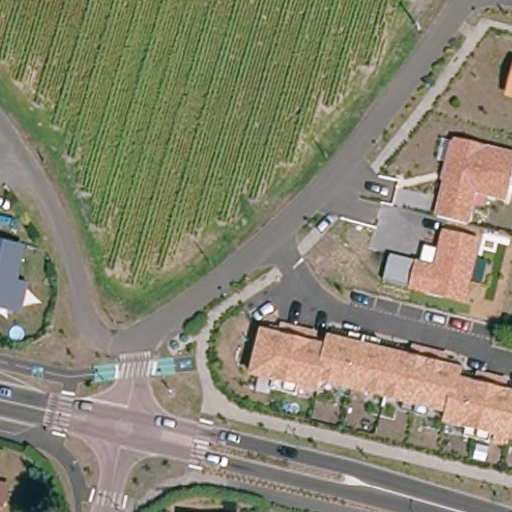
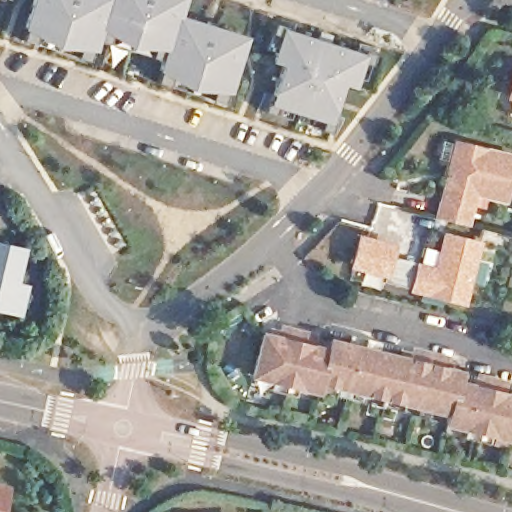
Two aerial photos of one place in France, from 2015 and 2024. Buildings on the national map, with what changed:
new [(194,90),(157,67),(164,49),(131,47),(102,29),(95,48),(55,46),(25,26),(32,0),(185,0),(180,15),(248,36),(231,91),(194,90)]
new [(271,104),(282,65),(271,62),(281,26),(365,54),(355,88),(342,85),(332,121),(271,104)]
unchanged [(512,88),(512,96),(510,96),(512,88)]
unchanged [(512,153),(512,183),(507,202),(476,194),(469,223),(434,213),(452,138),(512,153)]
unchanged [(435,266),(442,231),(481,240),(477,258),(487,261),(482,286),(472,282),(467,306),(408,291),(382,285),(390,255),(415,261),(435,266)]
unchanged [(19,313),(7,310),(0,308),(0,245),(22,252),(13,286),(25,289),(19,313)]
unchanged [(491,444),(479,441),(467,438),(469,428),(450,423),(452,413),(433,409),(431,419),(418,415),(421,406),(324,382),(322,391),(301,386),(298,396),(286,393),(273,390),(276,380),(255,375),(266,333),(281,337),(283,326),(298,330),(313,334),(311,344),(327,348),(329,339),(347,343),(350,332),(380,340),(377,351),(412,359),(415,349),(447,357),(445,367),(463,372),(461,382),(477,386),(479,376),(509,383),(507,394),(512,395),(512,438),(493,434),(491,444)]
unchanged [(4,493),(0,511),(0,492),(4,493)]

